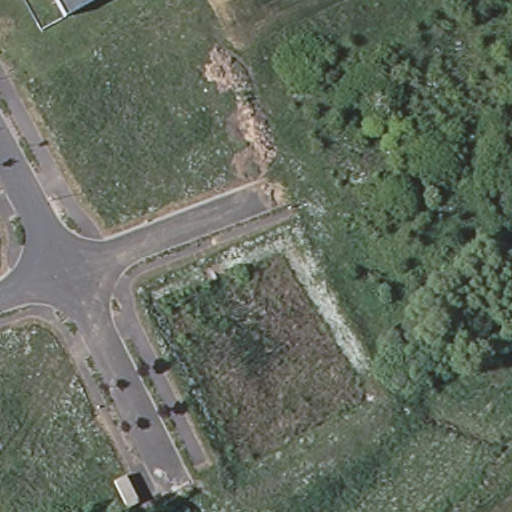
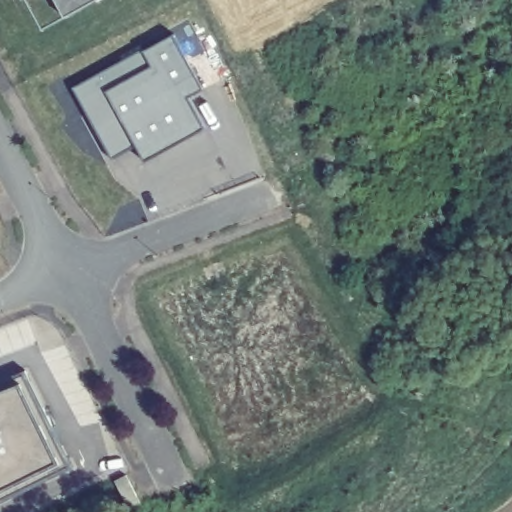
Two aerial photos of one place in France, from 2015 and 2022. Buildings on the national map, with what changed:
unchanged [(55,0),(100,0),(65,18),(55,0)]
new [(75,88),(145,50),(146,53),(175,36),(202,90),(187,98),(205,129),(145,161),(136,145),(113,159),(75,88)]
unchanged [(0,504),(0,380),(25,371),(74,467),(0,504)]

